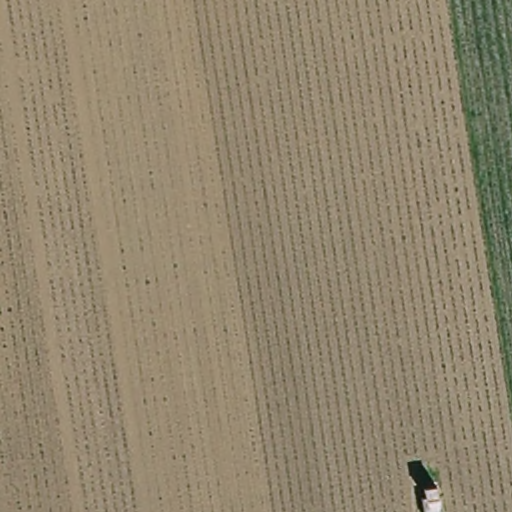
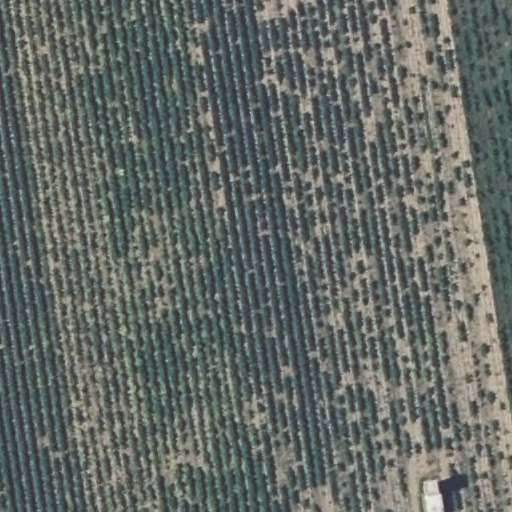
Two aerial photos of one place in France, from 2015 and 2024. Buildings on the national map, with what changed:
unchanged [(422,497),(425,497),(424,487),(436,486),(437,495),(441,495),(443,512),(424,512),(422,497)]

